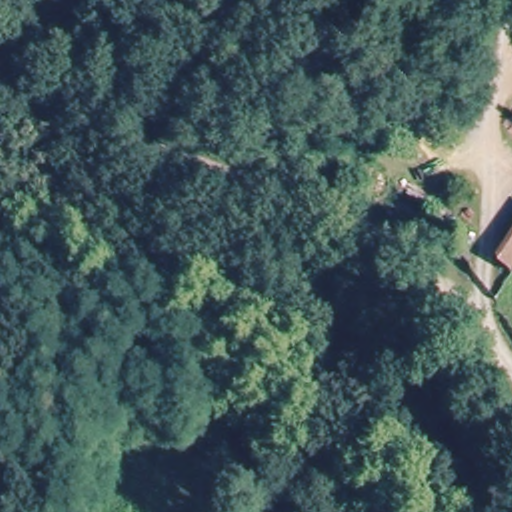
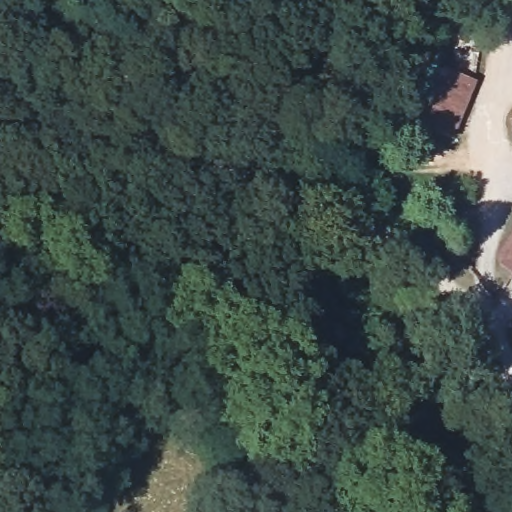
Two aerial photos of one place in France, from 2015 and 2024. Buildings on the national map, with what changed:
new [(430,115),(425,112),(444,66),(478,80),(453,140),(424,128),(430,115)]
unchanged [(500,258),(512,239),(512,268),(500,258)]

